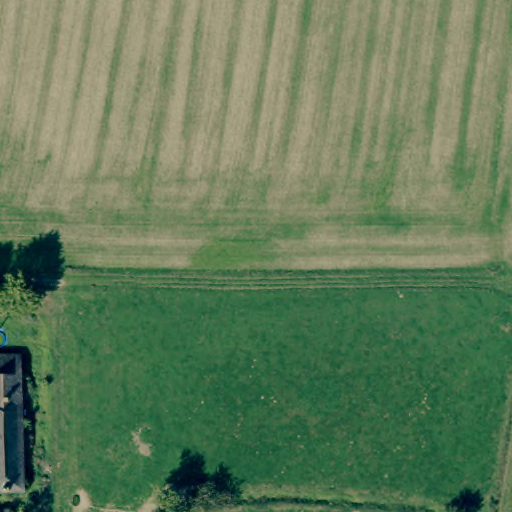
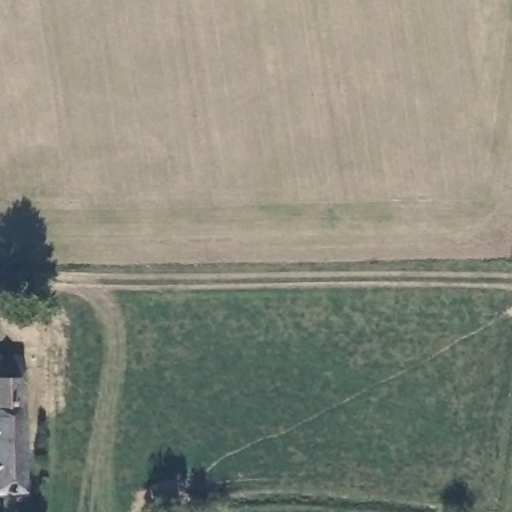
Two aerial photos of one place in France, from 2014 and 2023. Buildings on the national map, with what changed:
unchanged [(10,349),(17,489),(0,489),(0,350),(10,349)]

